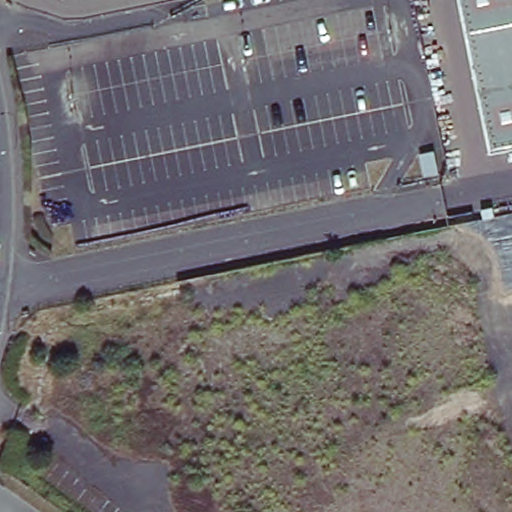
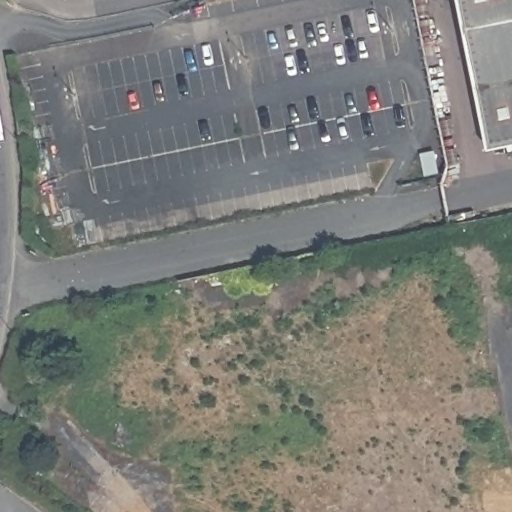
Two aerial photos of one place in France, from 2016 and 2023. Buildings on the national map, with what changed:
unchanged [(493,145),(464,0),(512,0),(512,142),(493,145)]

